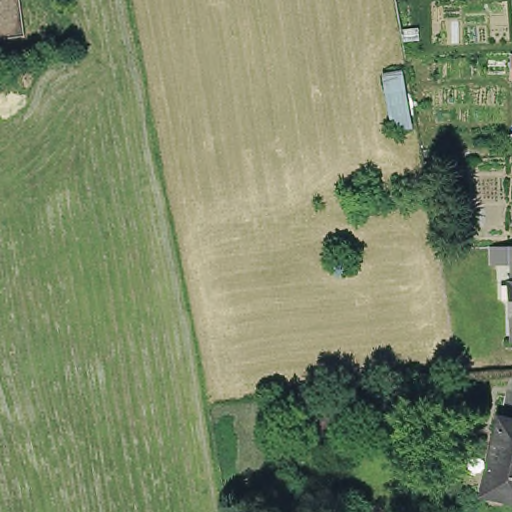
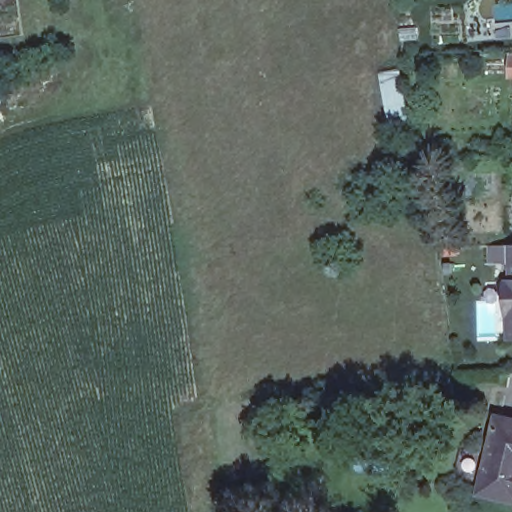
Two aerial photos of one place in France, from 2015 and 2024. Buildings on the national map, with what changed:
unchanged [(502,45),(512,45),(512,76),(501,76),(502,45)]
unchanged [(489,260),(487,243),(511,242),(512,242),(512,286),(510,259),(489,260)]
unchanged [(507,298),(512,297),(512,333),(510,334),(507,298)]
unchanged [(495,422),(512,426),(512,502),(478,494),(495,422)]

